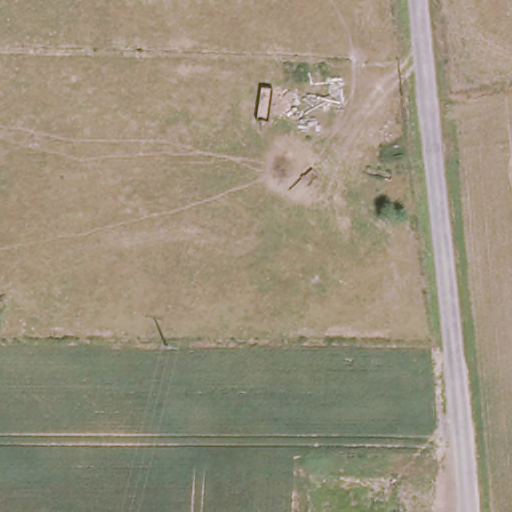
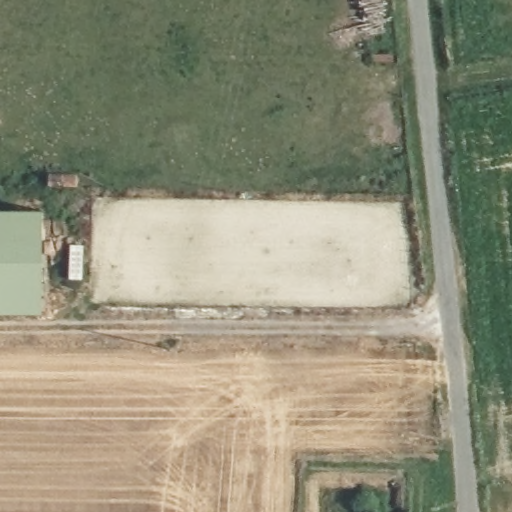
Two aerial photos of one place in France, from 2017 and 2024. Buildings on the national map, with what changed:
new [(38,317),(0,317),(0,212),(38,212),(38,317)]

